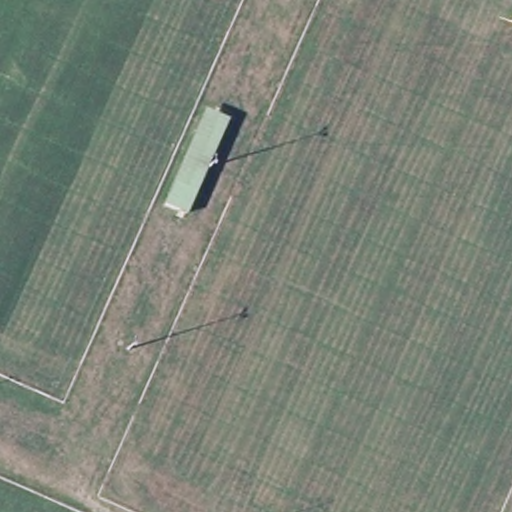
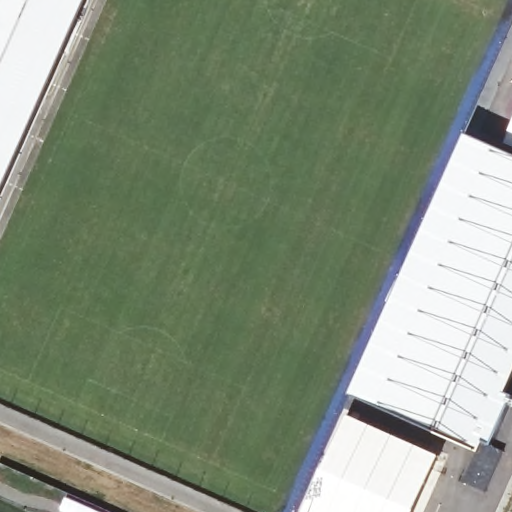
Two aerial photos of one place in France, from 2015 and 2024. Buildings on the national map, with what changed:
new [(2,3),(4,0),(88,0),(0,199),(0,1),(2,3)]
new [(512,146),(504,142),(512,121),(512,146)]
new [(512,385),(508,393),(512,394),(512,402),(492,447),(484,443),(479,453),(350,395),(468,135),(512,154),(512,385)]
new [(440,455),(416,512),(305,512),(348,416),(440,455)]

